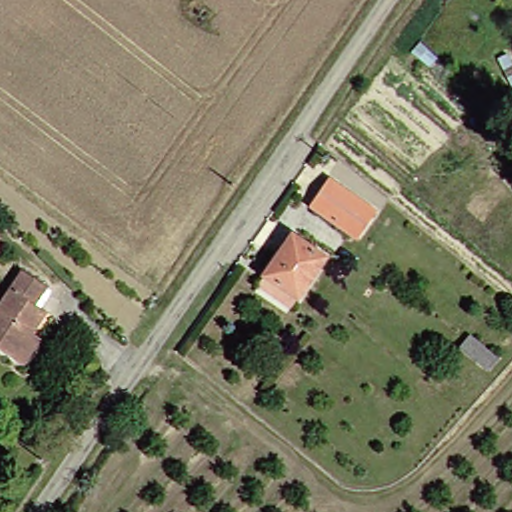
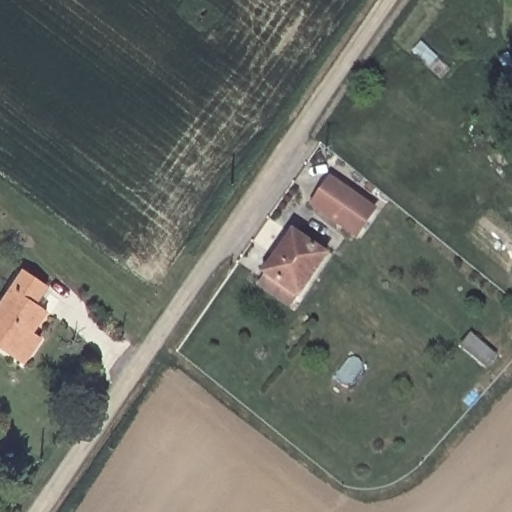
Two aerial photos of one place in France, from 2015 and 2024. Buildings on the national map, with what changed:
unchanged [(360,235),(347,224),(316,200),(335,179),(365,198),(378,211),(360,235)]
unchanged [(328,259),(291,308),(262,289),(300,237),(328,259)]
unchanged [(18,357),(0,343),(0,311),(31,269),(54,287),(40,303),(52,313),(38,333),(44,339),(24,363),(18,357)]
unchanged [(485,372),(460,356),(469,342),(494,362),(485,372)]

